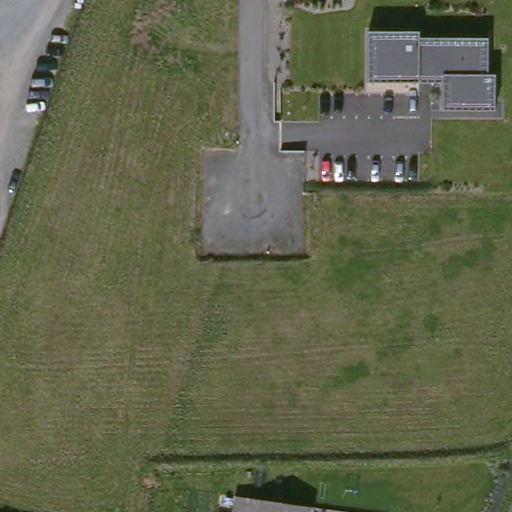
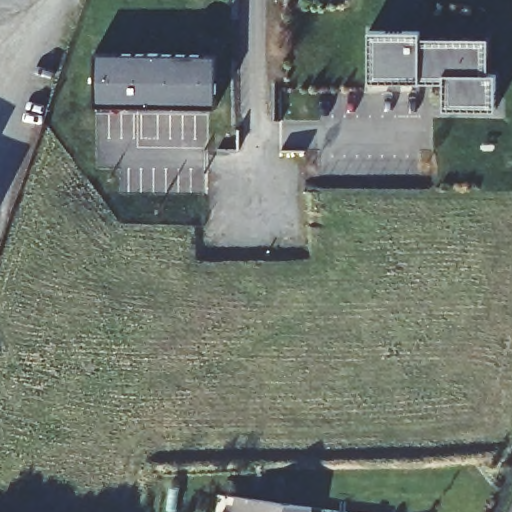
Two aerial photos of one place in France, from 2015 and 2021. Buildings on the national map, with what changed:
unchanged [(421,32),(421,38),(487,39),(488,74),(495,74),(497,110),(445,110),(444,83),(370,83),(370,32),(421,32)]
new [(102,98),(103,43),(226,45),(225,99),(160,98),(137,98),(102,98)]
unchanged [(237,512),(240,495),(313,506),(312,512),(237,512)]

